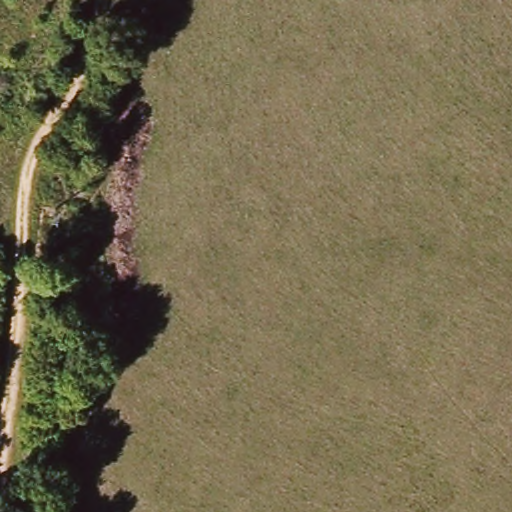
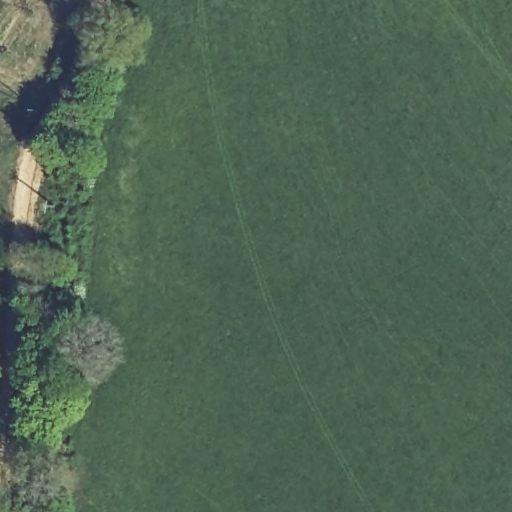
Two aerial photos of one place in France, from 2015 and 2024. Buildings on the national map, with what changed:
[]

